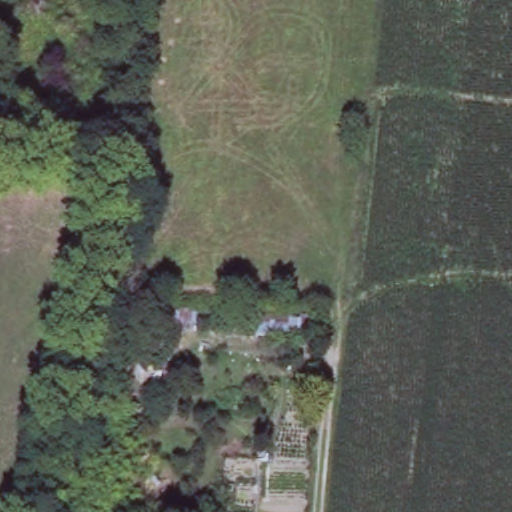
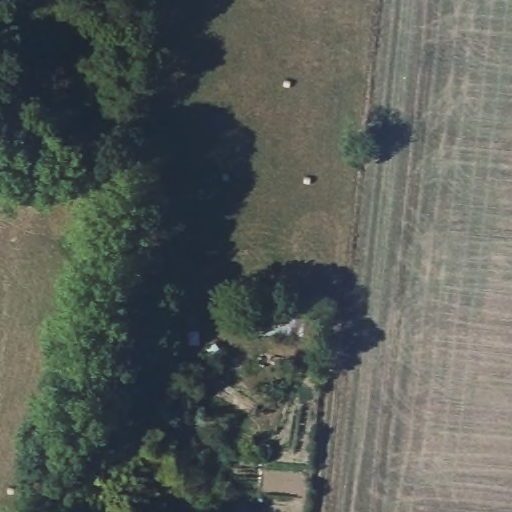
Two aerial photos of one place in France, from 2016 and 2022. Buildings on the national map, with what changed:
unchanged [(319,317),(318,346),(257,345),(260,311),(319,317)]

